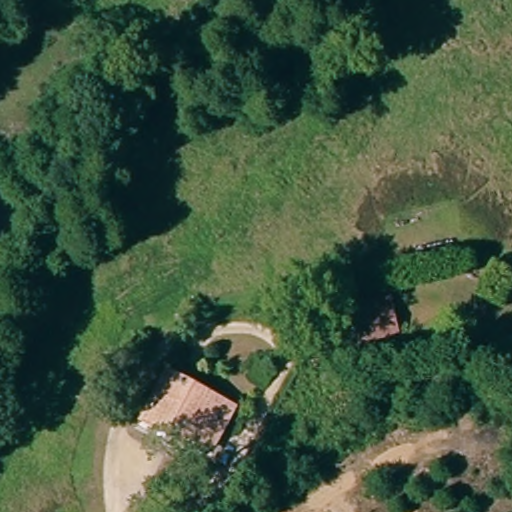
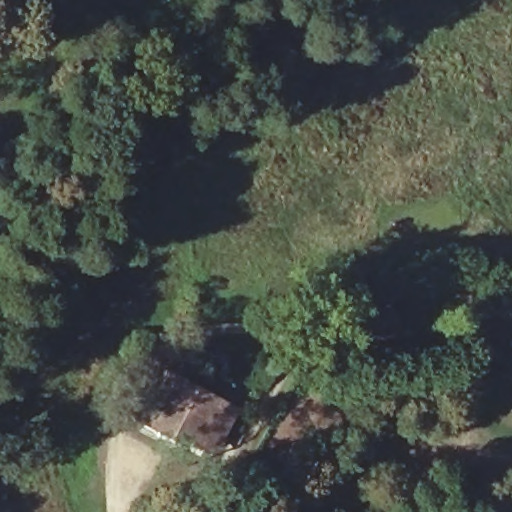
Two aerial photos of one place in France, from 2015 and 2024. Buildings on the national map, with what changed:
unchanged [(363,345),(353,303),(395,295),(404,335),(363,345)]
unchanged [(150,417),(175,376),(212,399),(189,433),(185,440),(150,417)]
unchanged [(212,399),(237,415),(215,450),(189,433),(212,399)]

